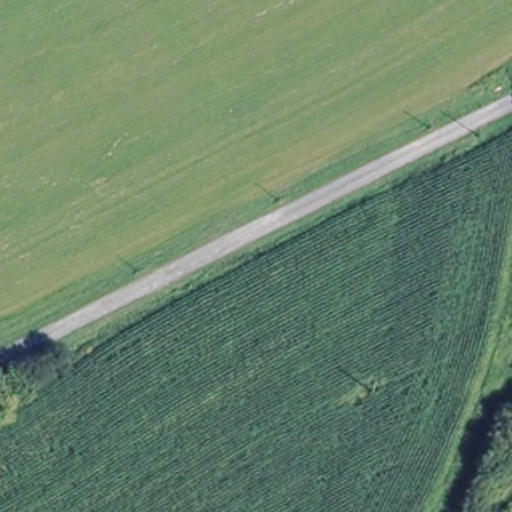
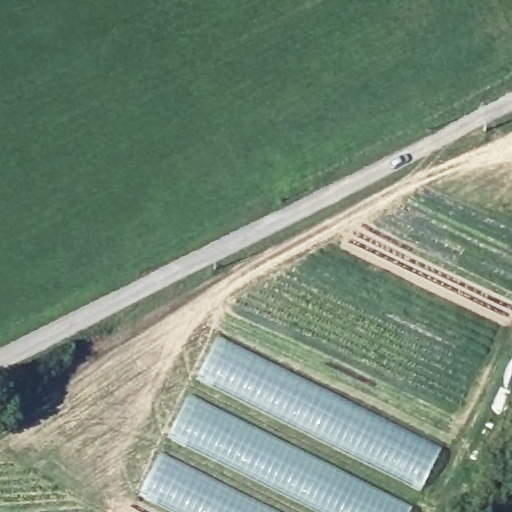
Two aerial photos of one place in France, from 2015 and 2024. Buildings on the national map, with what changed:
new [(219,334),(443,447),(421,491),(196,379),(219,334)]
new [(189,393),(413,506),(410,512),(318,512),(167,437),(189,393)]
new [(159,452),(213,479),(261,507),(274,512),(171,512),(138,496),(159,452)]

